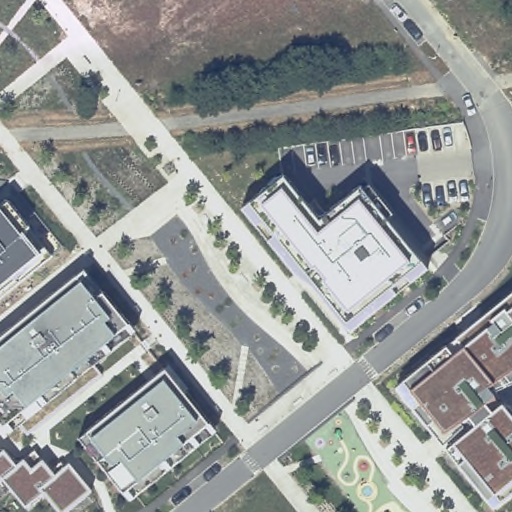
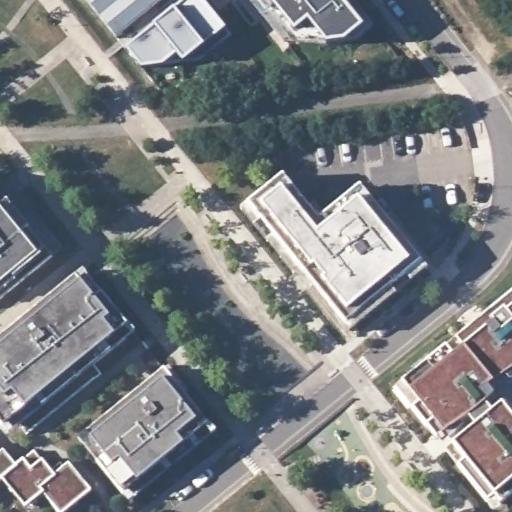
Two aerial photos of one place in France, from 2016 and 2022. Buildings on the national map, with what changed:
new [(175,11),(186,0),(200,0),(222,28),(228,37),(200,60),(184,61),(159,63),(141,66),(126,48),(142,33),(134,23),(115,38),(85,0),(167,0),(175,11)]
new [(250,0),(351,0),(373,28),(356,42),(326,45),(308,22),(284,42),(250,0)]
unchanged [(320,223),(360,188),(420,262),(427,270),(349,333),(310,286),(292,275),(265,243),(239,210),(249,204),(282,177),(320,223)]
unchanged [(1,209),(6,202),(28,228),(24,234),(39,255),(43,260),(15,285),(12,280),(0,289),(0,208),(1,209)]
unchanged [(111,352),(93,366),(100,374),(27,434),(20,424),(10,434),(2,426),(0,423),(0,338),(82,269),(87,277),(82,283),(94,299),(101,292),(133,332),(111,352)]
unchanged [(446,347),(512,293),(512,382),(491,391),(502,403),(512,417),(512,493),(493,509),(457,466),(445,450),(442,445),(412,409),(396,388),(402,382),(446,347)]
unchanged [(131,502),(123,492),(107,472),(98,462),(79,438),(86,434),(163,371),(214,431),(131,502)]
unchanged [(2,451),(16,466),(23,460),(33,451),(42,461),(53,476),(68,464),(90,491),(63,512),(58,512),(42,493),(25,508),(1,480),(0,481),(0,453),(2,451)]

